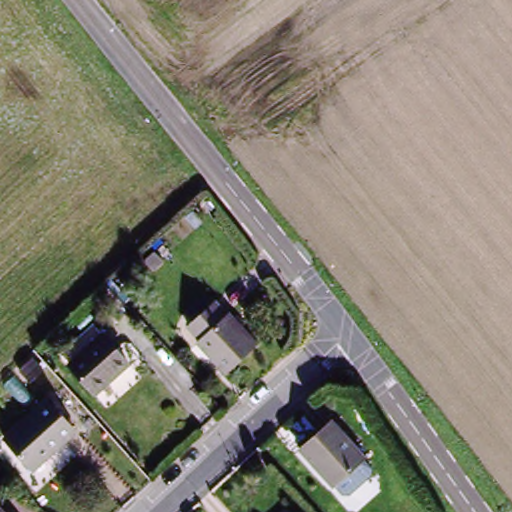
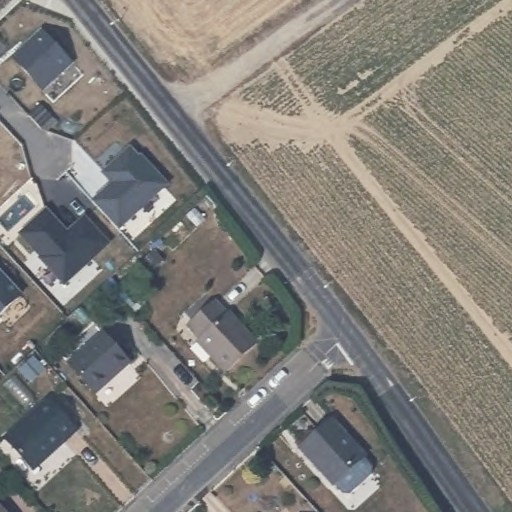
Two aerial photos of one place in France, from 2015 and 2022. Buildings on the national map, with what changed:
new [(45,32),(72,64),(44,90),(16,59),(45,32)]
new [(142,161),(145,159),(168,185),(119,231),(93,203),(116,185),(106,175),(132,150),(142,161)]
new [(60,225),(56,228),(65,238),(86,218),(108,244),(65,284),(43,260),(44,258),(21,234),(48,212),(60,225)]
new [(22,296),(0,315),(0,274),(22,296)]
unchanged [(179,331),(210,298),(261,344),(226,375),(179,331)]
unchanged [(128,364),(91,395),(66,366),(98,337),(128,364)]
unchanged [(76,431),(29,471),(0,439),(0,437),(42,399),(76,431)]
unchanged [(366,457),(340,485),(302,447),(331,419),(366,457)]
unchanged [(3,512),(0,512),(0,509),(3,512)]

